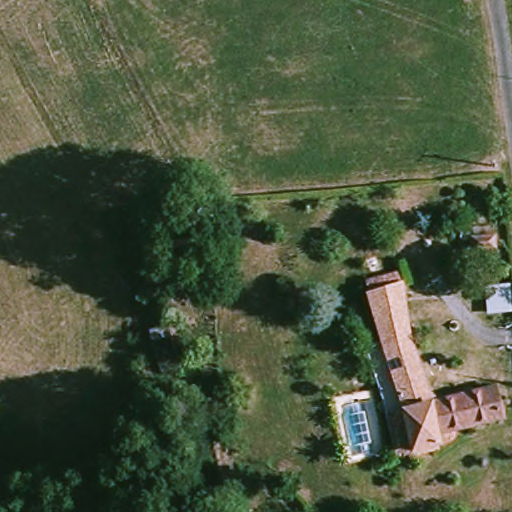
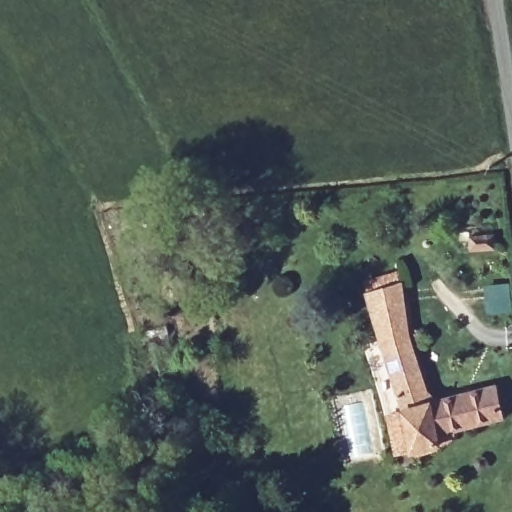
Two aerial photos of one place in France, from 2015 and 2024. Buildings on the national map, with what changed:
unchanged [(465,234),(490,230),(492,246),(467,248),(465,234)]
unchanged [(388,341),(377,287),(412,281),(424,332),(390,341),(388,341)]
unchanged [(390,414),(409,409),(390,341),(424,332),(440,398),(502,382),(510,412),(446,429),(449,440),(419,449),(419,446),(400,451),(390,414)]

